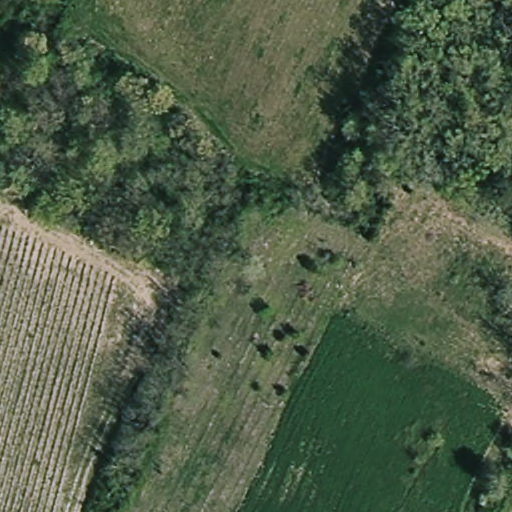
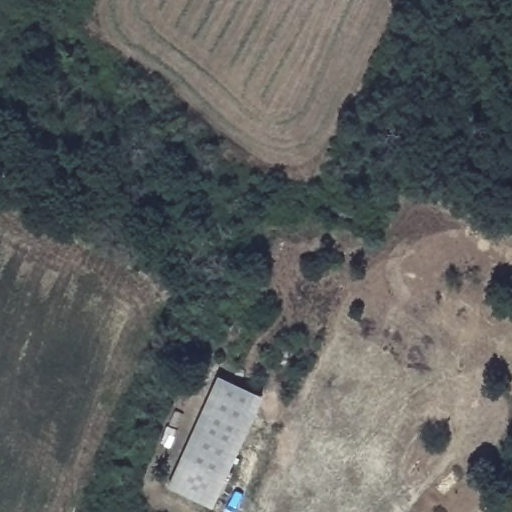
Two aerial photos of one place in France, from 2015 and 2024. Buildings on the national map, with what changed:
new [(216,376),(263,397),(213,508),(167,488),(216,376)]

